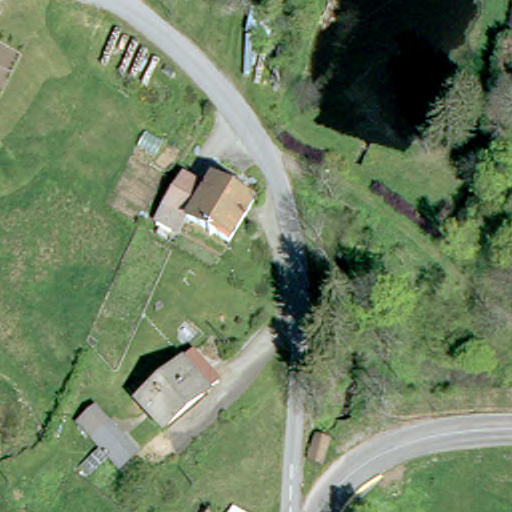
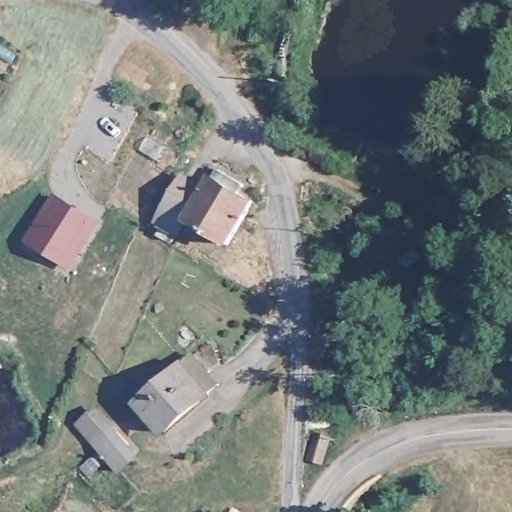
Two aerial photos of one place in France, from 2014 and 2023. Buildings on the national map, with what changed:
unchanged [(262,98),(270,72),(282,76),(275,102),(262,98)]
unchanged [(163,220),(172,207),(187,184),(209,199),(225,179),(254,199),(250,204),(260,212),(233,250),(193,221),(184,234),(163,220)]
new [(54,197),(96,224),(75,258),(70,266),(27,239),(32,231),(54,197)]
unchanged [(140,414),(180,380),(193,368),(220,399),(205,410),(166,442),(140,414)]
unchanged [(119,476),(95,445),(81,429),(98,414),(112,431),(136,460),(119,476)]
unchanged [(325,438),(319,464),(305,460),(310,434),(325,438)]

